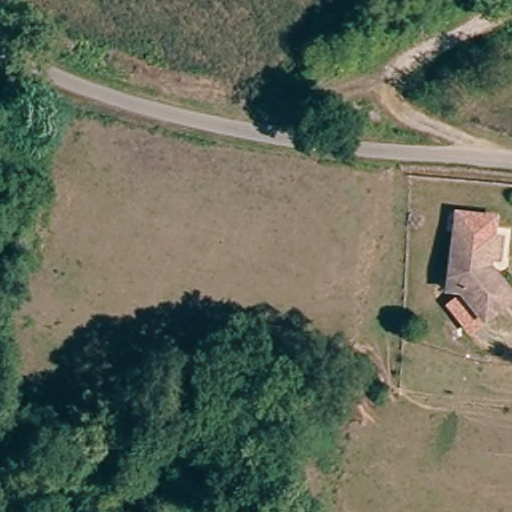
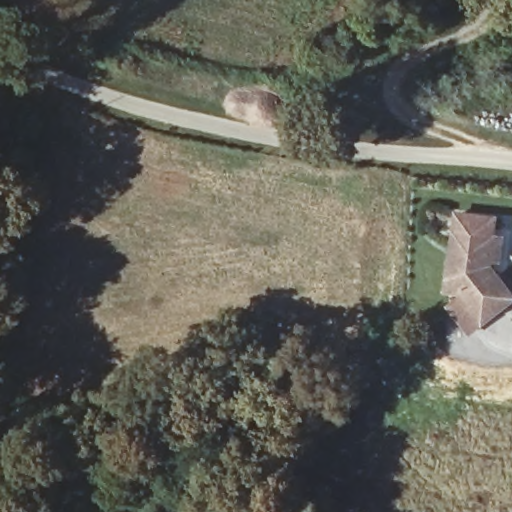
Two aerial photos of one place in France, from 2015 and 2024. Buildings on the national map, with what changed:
unchanged [(493,239),(506,241),(504,261),(492,260),(492,269),(496,274),(512,297),(512,300),(482,321),(460,292),(460,287),(445,286),(447,274),(454,234),(493,239)]

